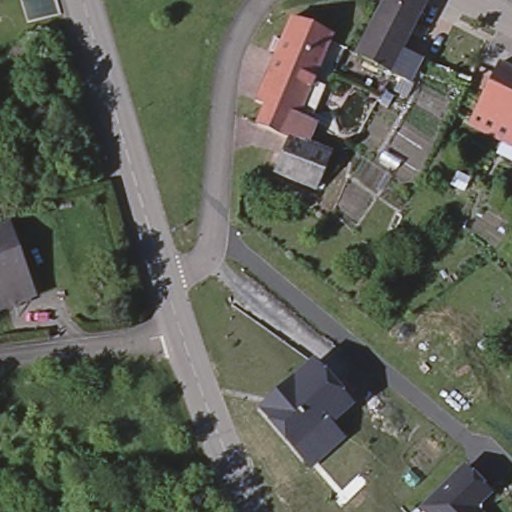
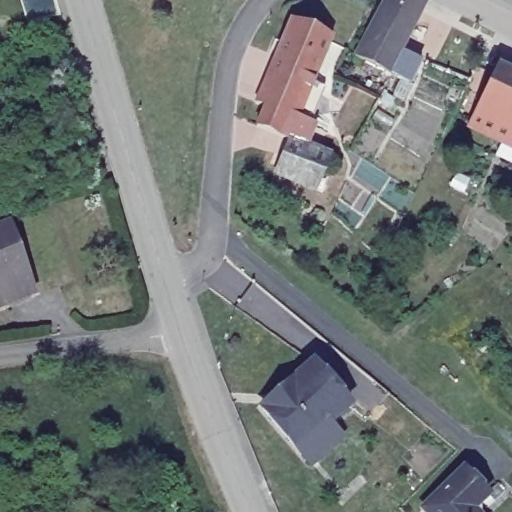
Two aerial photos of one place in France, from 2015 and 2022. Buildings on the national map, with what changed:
unchanged [(384,0),(423,0),(427,2),(422,10),(408,35),(375,19),(384,0)]
unchanged [(290,19),(332,38),(317,74),(274,58),(290,19)]
unchanged [(409,83),(389,74),(355,57),(375,19),(408,35),(402,49),(422,59),(409,83)]
unchanged [(307,144),(306,148),(289,140),(256,126),(265,105),(255,101),(274,58),(317,74),(312,83),(325,89),(310,123),(315,124),(307,144)]
unchanged [(512,142),(470,121),(497,64),(512,71),(512,142)]
unchanged [(306,148),(307,144),(330,155),(316,189),(275,172),(289,140),(306,148)]
unchanged [(3,222),(1,223),(0,221),(0,217),(8,214),(21,250),(24,258),(15,260),(25,289),(0,298),(0,243),(11,247),(3,222)]
unchanged [(333,444),(310,464),(297,449),(264,411),(260,407),(275,394),(292,381),(312,363),(348,405),(327,424),(340,439),(333,444)]
unchanged [(462,469),(487,495),(477,504),(480,508),(479,512),(426,512),(422,508),(462,469)]

